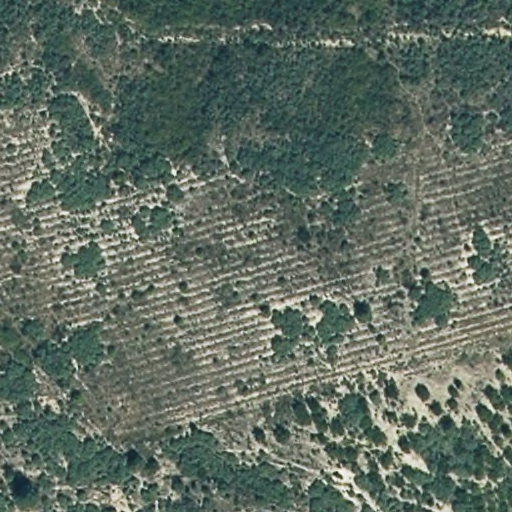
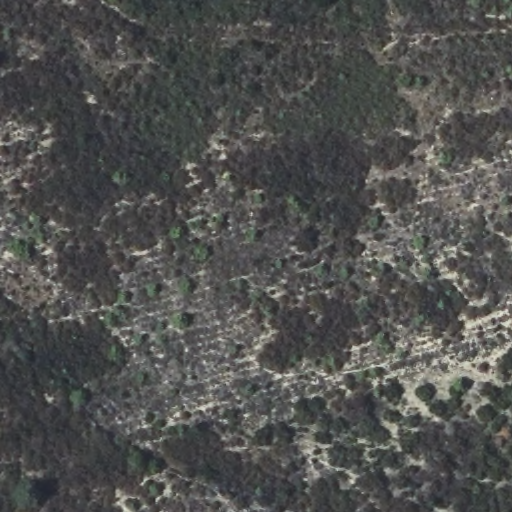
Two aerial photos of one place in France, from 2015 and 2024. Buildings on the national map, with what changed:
[]

